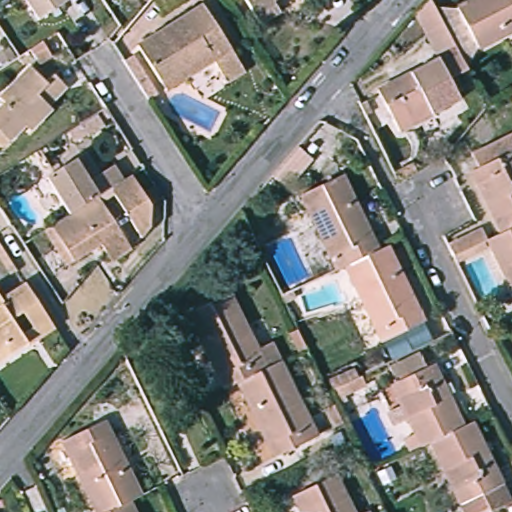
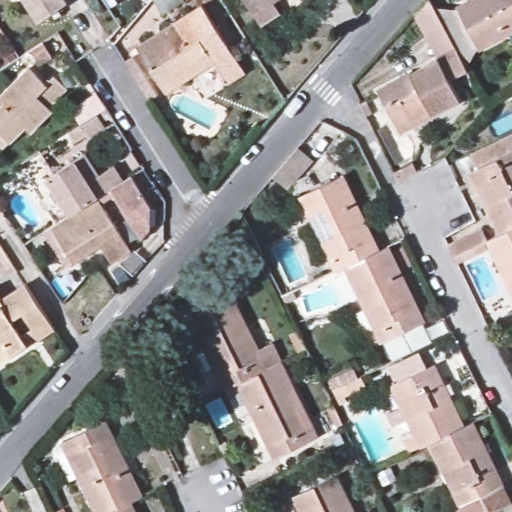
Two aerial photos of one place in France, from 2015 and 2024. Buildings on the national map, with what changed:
unchanged [(72,6),(43,24),(28,0),(74,0),(70,2),(72,6)]
unchanged [(258,13),(249,0),(276,0),(276,2),(258,13)]
unchanged [(432,0),(467,64),(448,73),(460,96),(399,128),(378,86),(438,54),(414,9),(423,0),(432,0)]
unchanged [(512,0),(512,32),(479,50),(456,8),(471,0),(512,0)]
unchanged [(160,83),(138,46),(203,6),(244,74),(228,85),(213,63),(194,74),(166,92),(160,83)]
unchanged [(46,60),(33,68),(25,54),(38,46),(46,60)]
unchanged [(134,77),(124,62),(134,55),(144,70),(159,94),(149,100),(143,91),(134,77)]
unchanged [(0,107),(0,106),(0,97),(26,71),(44,87),(53,79),(65,91),(45,110),(49,114),(34,128),(27,134),(22,129),(7,144),(1,149),(0,148),(0,107)]
unchanged [(99,116),(107,129),(90,138),(88,136),(76,142),(71,134),(99,116)]
unchanged [(491,217),(471,173),(477,170),(470,154),(512,133),(512,152),(512,229),(499,234),(491,217)]
unchanged [(48,179),(85,157),(99,178),(114,169),(123,183),(71,216),(48,179)]
unchanged [(300,198),(341,176),(379,250),(344,268),(335,272),(300,198)]
unchanged [(71,216),(123,183),(133,178),(142,195),(156,187),(164,199),(150,207),(151,230),(143,241),(115,197),(102,204),(131,252),(111,264),(101,246),(74,262),(66,267),(44,233),(53,228),(71,216)]
unchanged [(309,178),(311,185),(294,194),(291,187),(309,178)]
unchanged [(491,217),(499,234),(487,241),(492,252),(457,268),(447,242),(491,217)]
unchanged [(492,252),(487,241),(499,234),(512,229),(512,296),(492,252)]
unchanged [(423,321),(381,343),(344,268),(379,250),(387,246),(423,321)]
unchanged [(26,285),(55,330),(29,347),(28,345),(0,363),(0,297),(2,300),(26,285)]
unchanged [(186,315),(230,294),(257,350),(271,343),(281,362),(238,383),(223,390),(186,315)]
unchanged [(299,353),(289,335),(296,331),(305,350),(299,353)]
unchanged [(281,362),(316,436),(274,457),(238,383),(281,362)]
unchanged [(386,387),(429,366),(459,427),(424,444),(415,448),(386,387)]
unchanged [(333,406),(341,424),(336,427),(326,410),(333,406)]
unchanged [(111,512),(94,512),(60,444),(104,422),(141,497),(129,503),(111,512)]
unchanged [(507,504),(491,512),(457,512),(424,444),(459,427),(465,424),(507,504)]
unchanged [(392,470),(396,479),(384,485),(379,476),(392,470)]
unchanged [(292,497),(335,477),(353,512),(299,512),(292,497)]
unchanged [(129,503),(134,512),(111,512),(129,503)]

